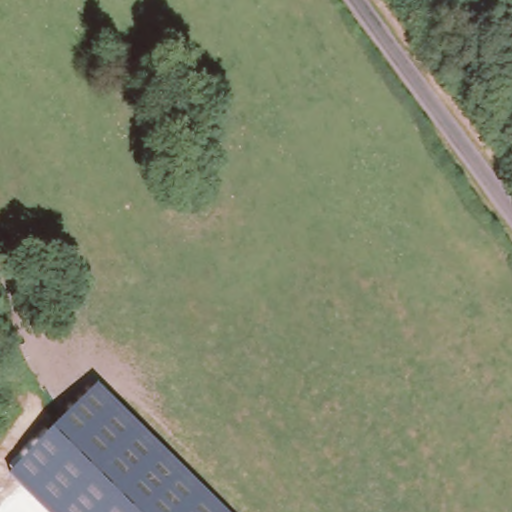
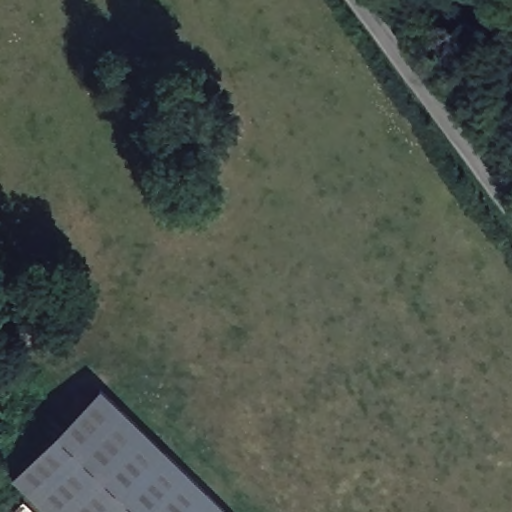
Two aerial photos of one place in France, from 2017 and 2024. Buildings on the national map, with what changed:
unchanged [(18,476),(108,390),(226,512),(52,512),(18,476)]

